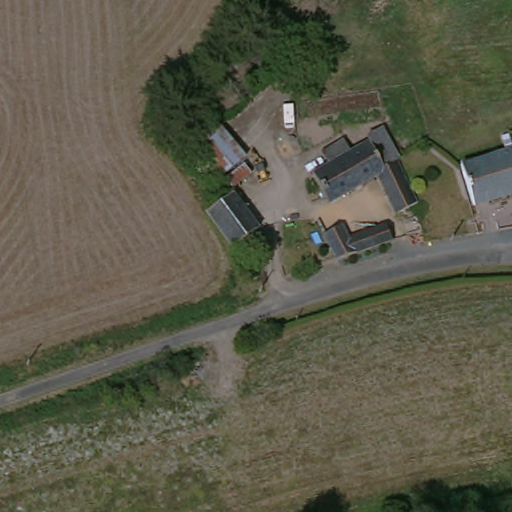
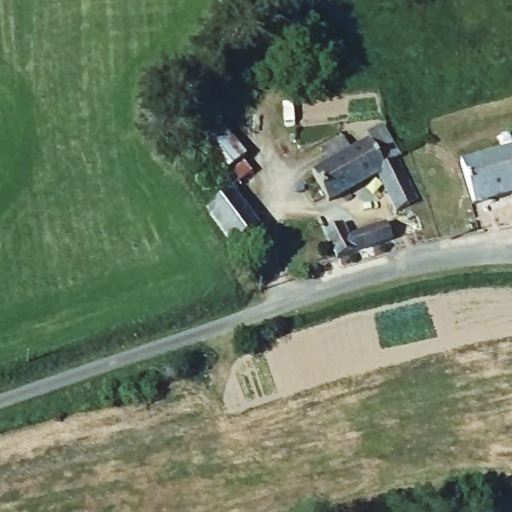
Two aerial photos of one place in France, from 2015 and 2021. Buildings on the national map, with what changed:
unchanged [(225,124),(251,153),(224,179),(197,148),(225,124)]
unchanged [(367,134),(383,125),(403,158),(398,161),(416,211),(396,217),(378,172),(333,201),(317,174),(332,165),(325,151),(347,137),(356,150),(370,140),(367,134)]
unchanged [(512,151),(512,192),(472,203),(462,167),(512,151)]
unchanged [(210,207),(232,191),(235,190),(258,227),(234,246),(210,207)]
unchanged [(327,237),(345,230),(351,242),(387,228),(395,244),(337,262),(327,237)]

